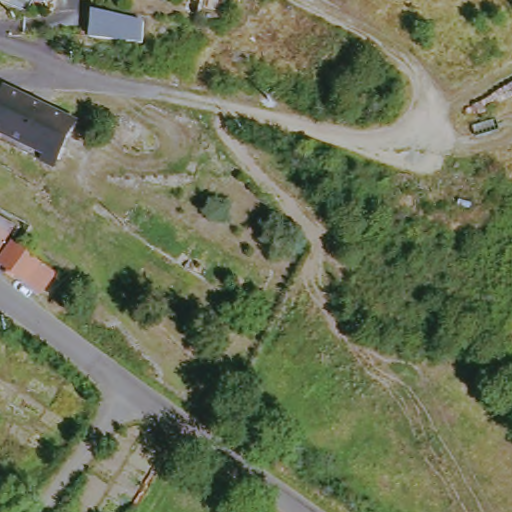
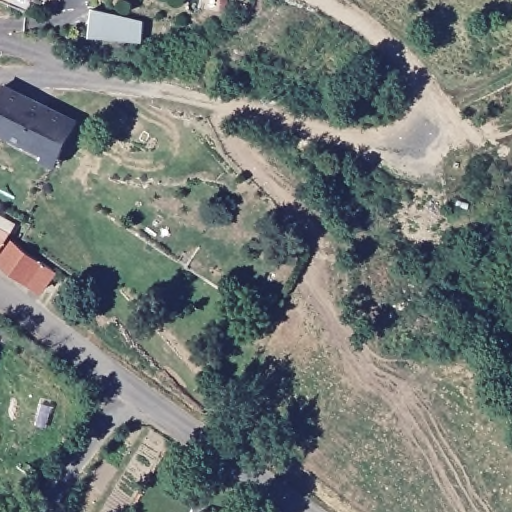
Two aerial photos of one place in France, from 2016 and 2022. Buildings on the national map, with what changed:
unchanged [(147,21),(145,43),(89,36),(91,6),(147,21)]
unchanged [(60,160),(0,131),(0,99),(6,87),(80,121),(60,160)]
unchanged [(17,219),(0,250),(0,210),(17,219)]
unchanged [(0,257),(15,237),(57,268),(42,287),(0,257)]

